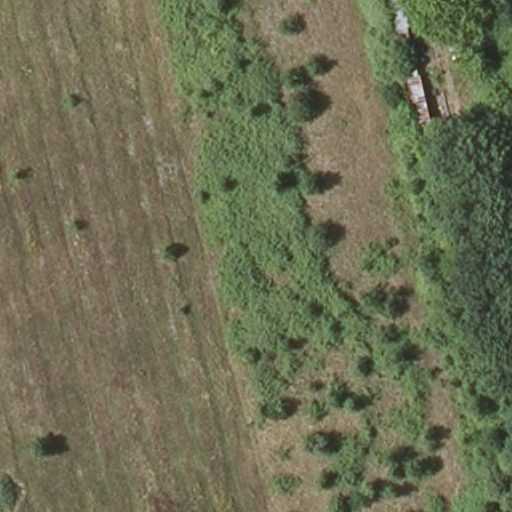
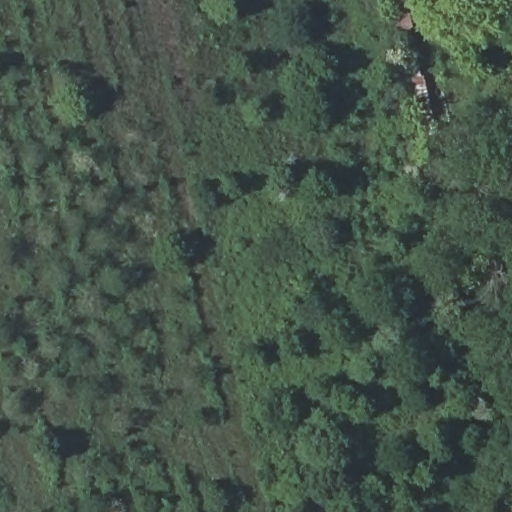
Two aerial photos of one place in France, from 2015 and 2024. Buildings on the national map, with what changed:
unchanged [(418,149),(387,0),(407,0),(435,144),(418,149)]

